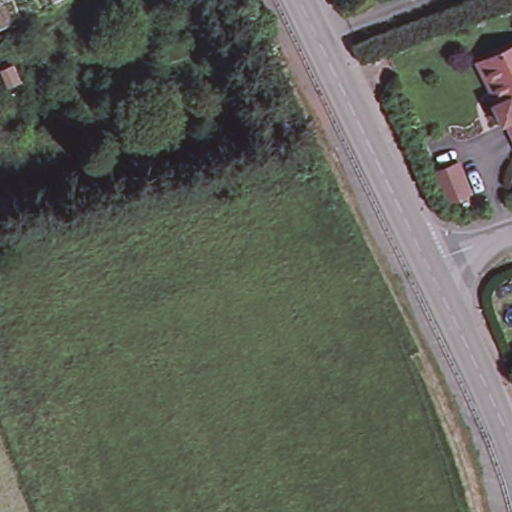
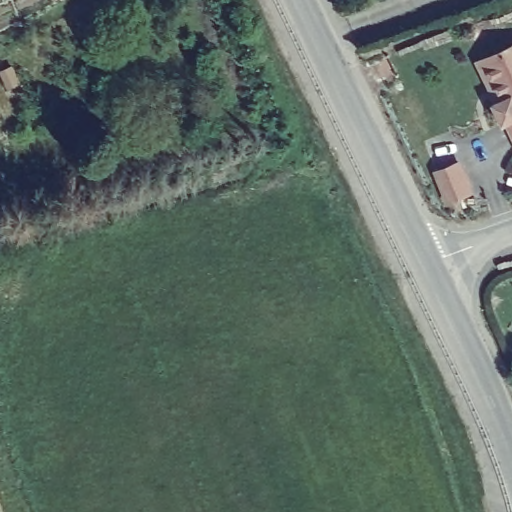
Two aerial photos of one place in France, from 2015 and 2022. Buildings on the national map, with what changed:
unchanged [(512,48),(512,127),(510,122),(505,124),(496,104),(500,102),(482,62),(486,60),(505,51),(512,48)]
unchanged [(443,174),(466,164),(478,193),(455,203),(443,174)]

